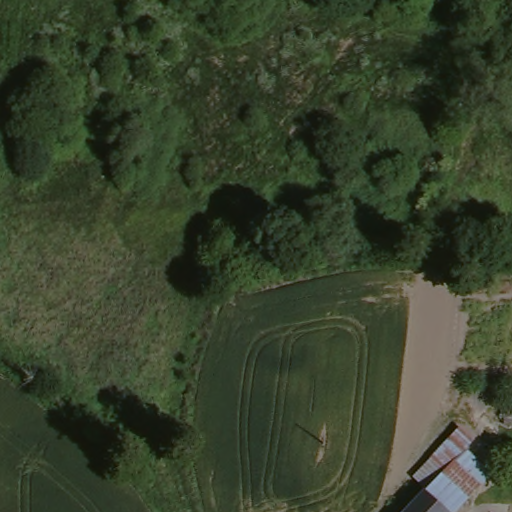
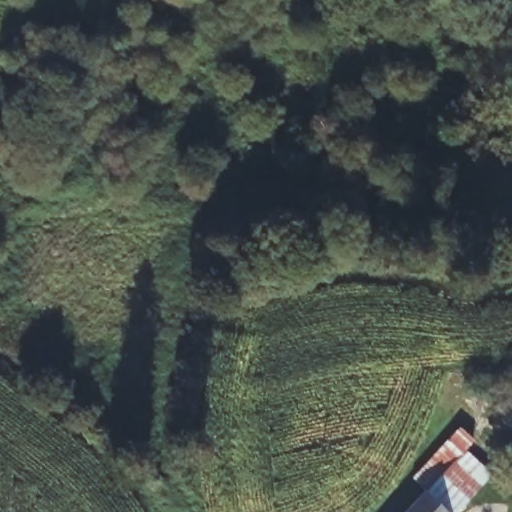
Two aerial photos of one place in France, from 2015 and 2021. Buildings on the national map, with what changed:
unchanged [(453,512),(438,512),(422,496),(427,492),(414,475),(431,457),(461,428),(473,441),(466,453),(484,473),(475,491),(453,512)]
unchanged [(438,512),(406,512),(422,496),(438,512)]

